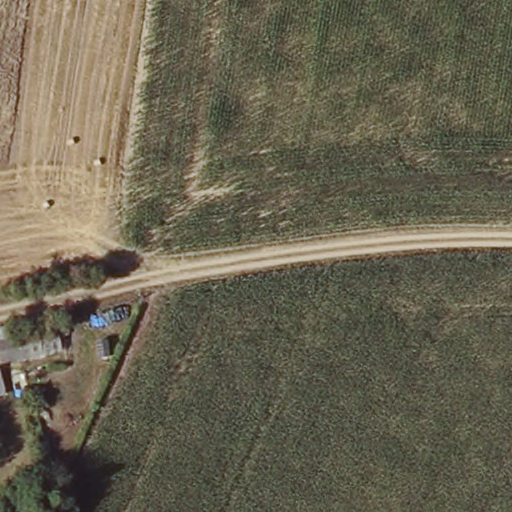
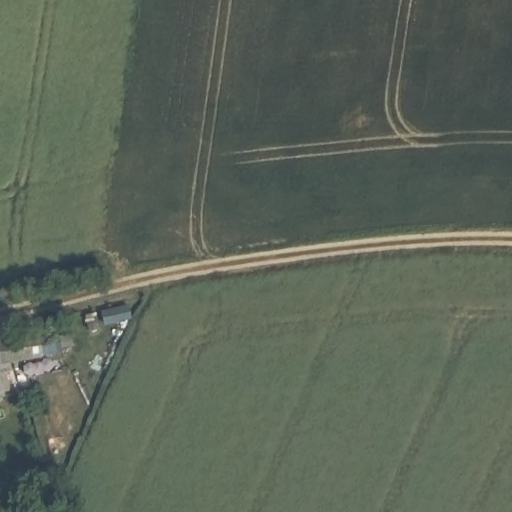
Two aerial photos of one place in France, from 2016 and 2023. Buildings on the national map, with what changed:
unchanged [(20,366),(16,343),(12,324),(26,322),(30,321),(33,340),(57,335),(61,357),(20,366)]

